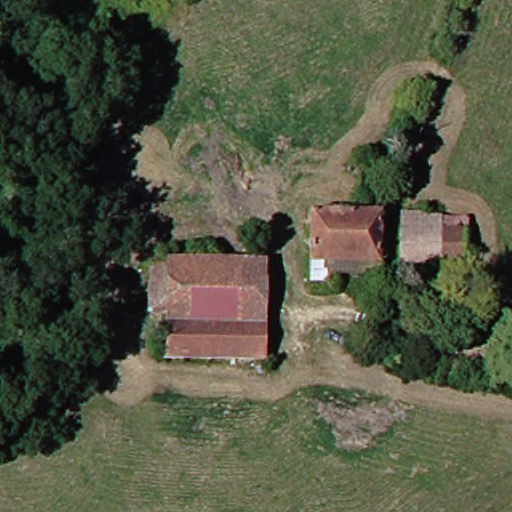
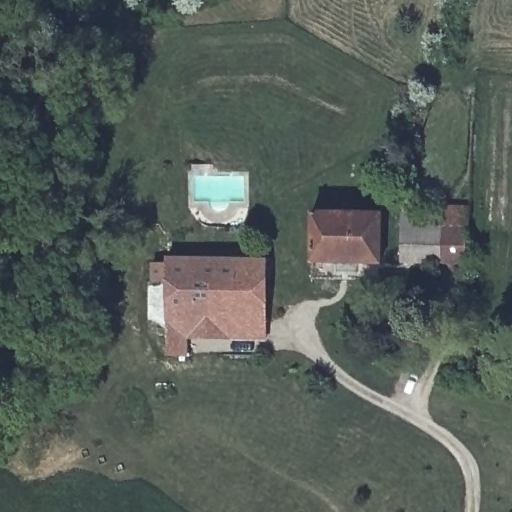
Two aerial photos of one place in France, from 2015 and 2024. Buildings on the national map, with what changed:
unchanged [(315,214),(382,214),(382,264),(316,263),(315,214)]
unchanged [(432,214),(431,218),(445,218),(446,231),(473,231),(472,265),(406,263),(406,214),(432,214)]
unchanged [(159,262),(175,261),(175,258),(243,257),(244,318),(175,318),(175,307),(159,307),(159,275),(159,262)]
unchanged [(273,257),(273,318),(244,318),(243,257),(273,257)]
unchanged [(383,283),(316,282),(316,263),(382,264),(383,283)]
unchanged [(273,354),(174,354),(175,318),(244,318),(273,318),(273,354)]

